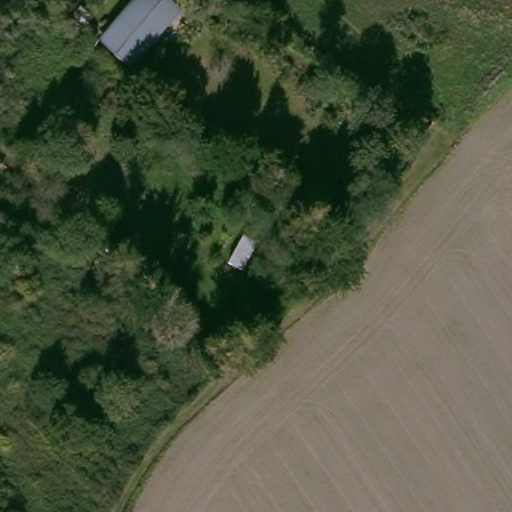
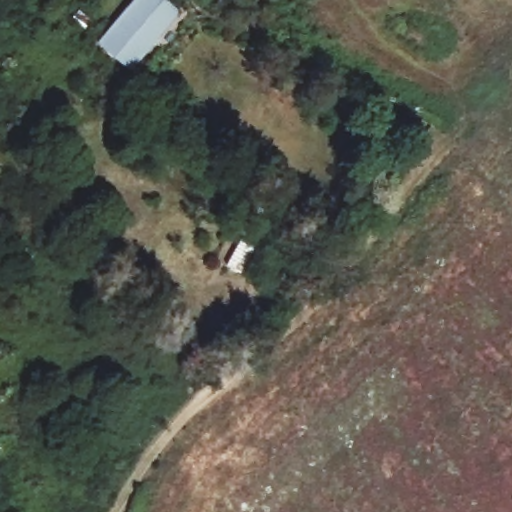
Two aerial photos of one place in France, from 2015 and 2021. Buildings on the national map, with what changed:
unchanged [(136,61),(107,37),(138,0),(177,0),(182,5),(136,61)]
unchanged [(254,247),(239,272),(227,266),(241,240),(254,247)]

